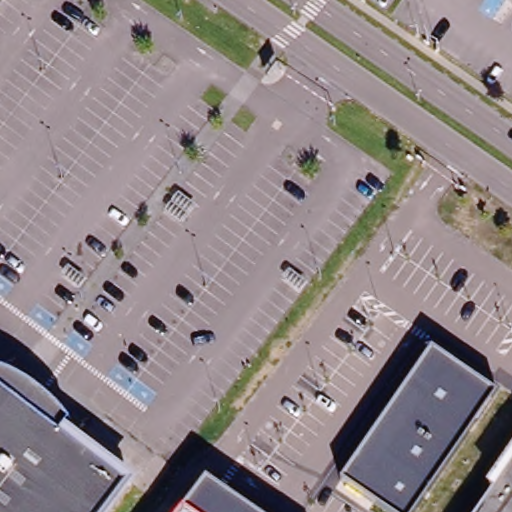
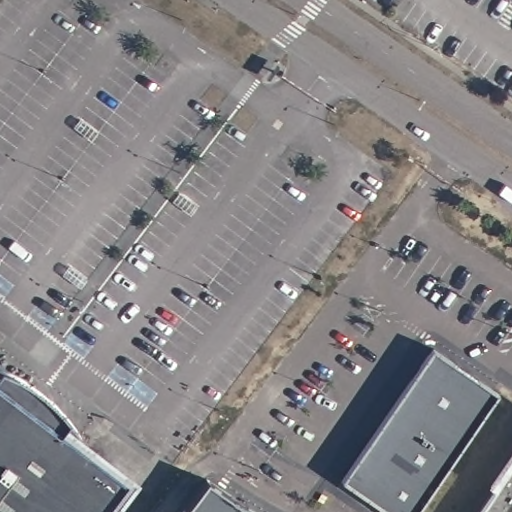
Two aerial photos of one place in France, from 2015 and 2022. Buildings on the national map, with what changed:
unchanged [(24,393),(43,407),(58,422),(72,442),(65,451),(115,489),(98,512),(0,512),(0,380),(6,383),(24,393)]
unchanged [(494,488),(512,463),(512,512),(484,512),(499,491),(494,488)]

